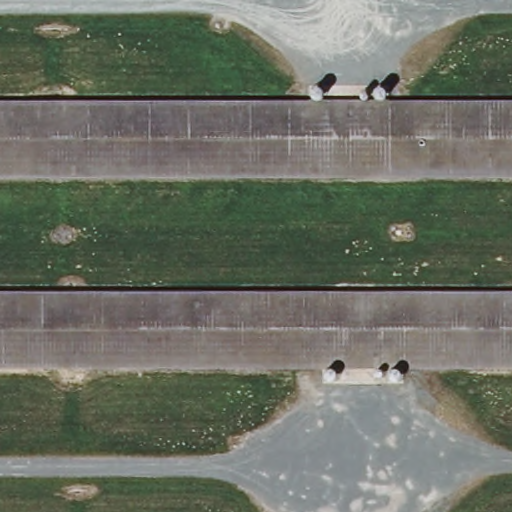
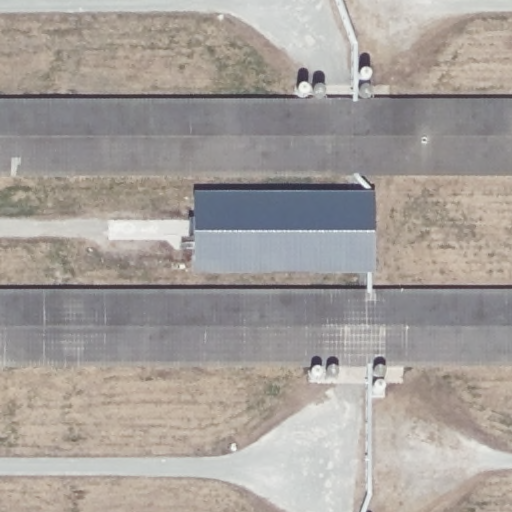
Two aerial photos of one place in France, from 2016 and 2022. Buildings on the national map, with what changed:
unchanged [(512,169),(0,167),(0,99),(512,101),(512,169)]
new [(373,195),(375,275),(192,273),(194,194),(373,195)]
unchanged [(512,359),(0,357),(0,291),(512,292),(512,359)]

